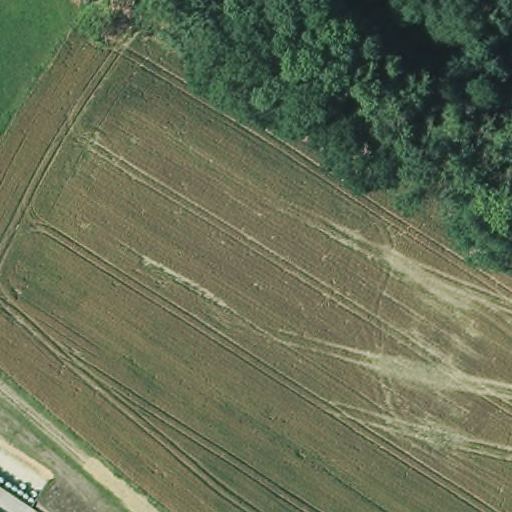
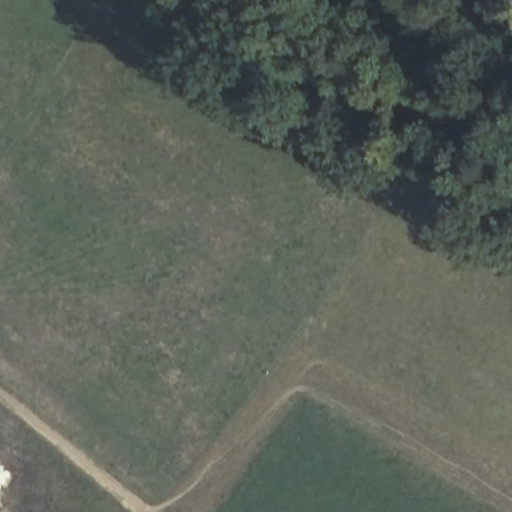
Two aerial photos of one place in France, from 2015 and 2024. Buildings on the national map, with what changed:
unchanged [(496,37),(512,48),(512,58),(507,66),(485,52),(496,37)]

